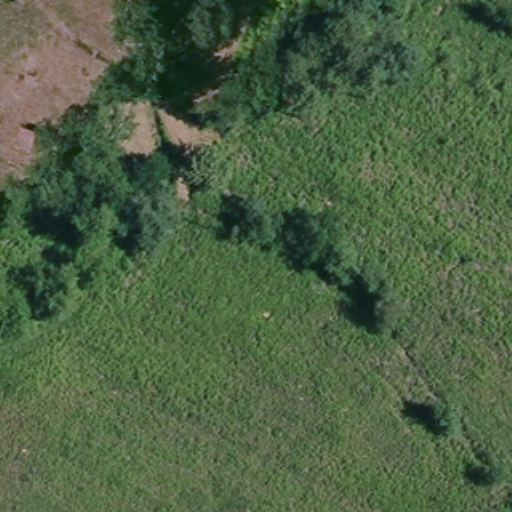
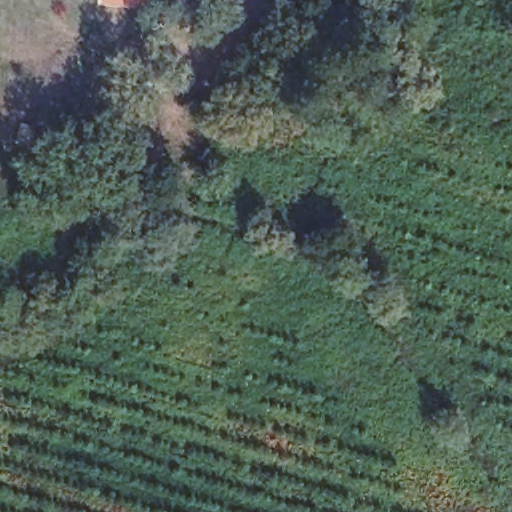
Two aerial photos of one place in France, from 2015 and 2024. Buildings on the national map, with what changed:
new [(145,0),(144,8),(96,2),(97,0),(145,0)]

